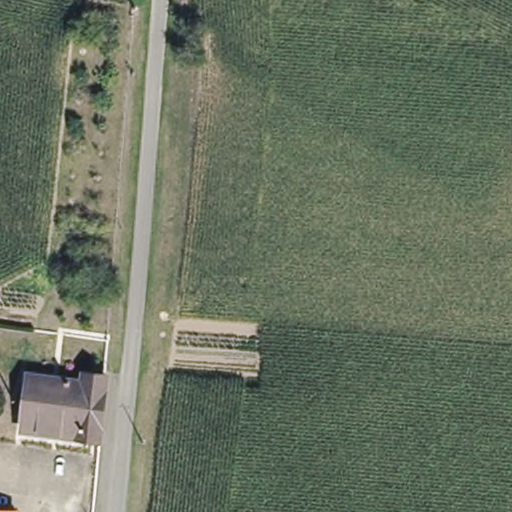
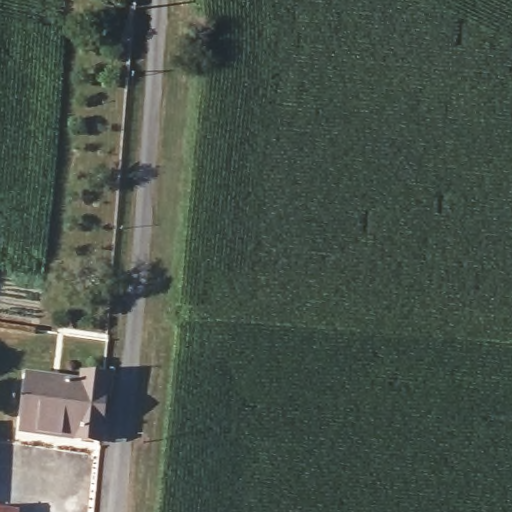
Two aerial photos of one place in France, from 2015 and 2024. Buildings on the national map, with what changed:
unchanged [(106,408),(29,404),(24,403),(27,377),(87,381),(86,371),(109,375),(106,408)]
unchanged [(104,435),(28,431),(29,404),(106,408),(104,435)]
unchanged [(0,512),(0,510),(19,510),(19,512),(0,512)]

